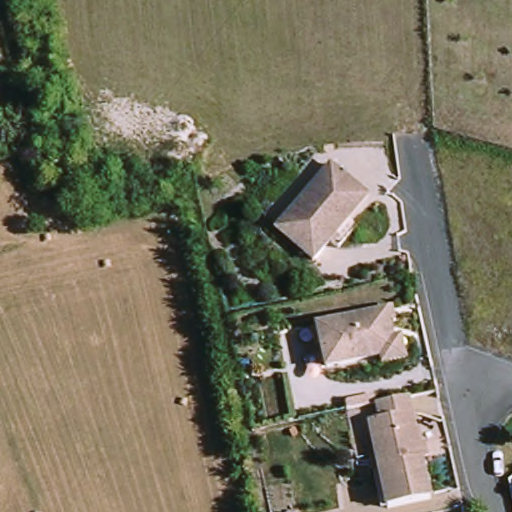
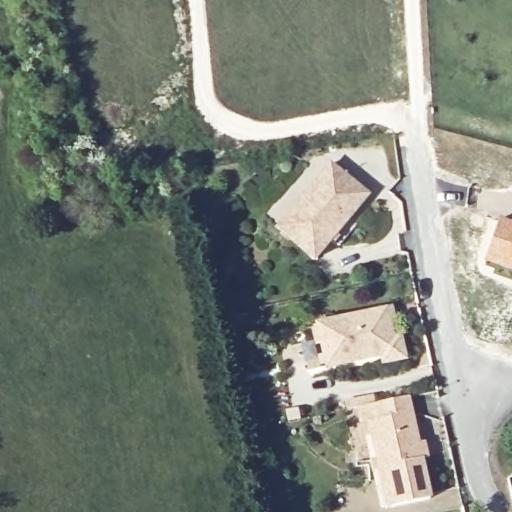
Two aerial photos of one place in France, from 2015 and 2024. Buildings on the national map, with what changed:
unchanged [(280,234),(308,196),(330,167),(367,197),(322,256),(318,261),(280,234)]
new [(500,217),(512,221),(512,273),(483,262),(500,217)]
unchanged [(325,369),(318,330),(387,315),(391,313),(393,322),(390,323),(393,344),(401,342),(406,365),(385,369),(382,357),(325,369)]
unchanged [(386,504),(367,419),(378,415),(375,401),(407,395),(417,441),(423,440),(426,453),(420,455),(428,495),(386,504)]

